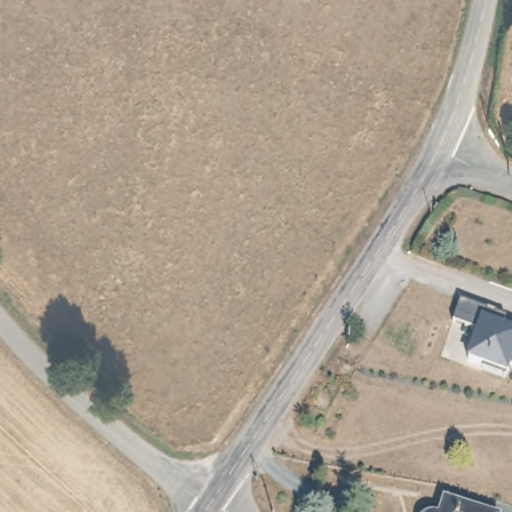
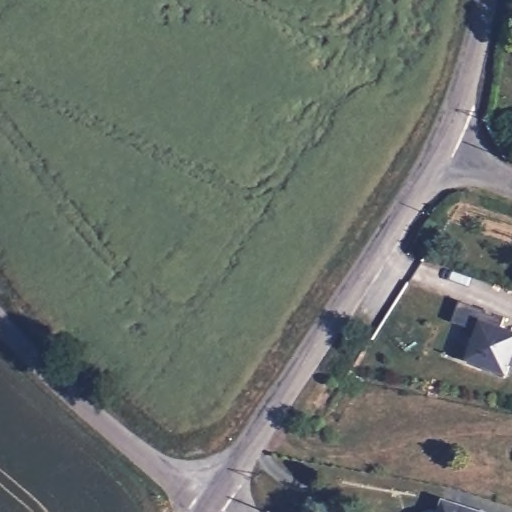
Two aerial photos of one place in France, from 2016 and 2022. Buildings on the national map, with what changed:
unchanged [(504,318),(500,329),(512,333),(512,361),(507,376),(467,363),(477,333),(453,326),(461,303),(504,318)]
unchanged [(445,501),(476,512),(442,512),(445,501)]

